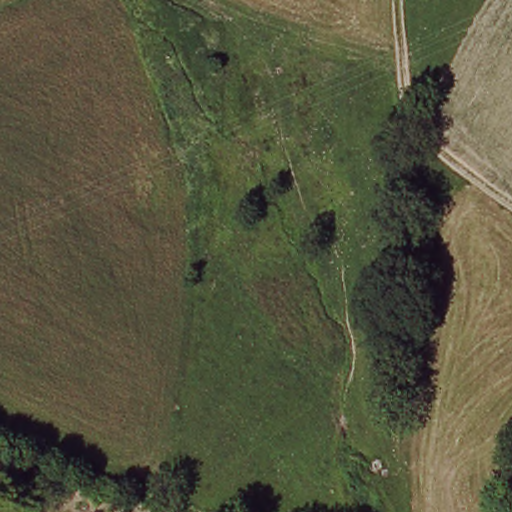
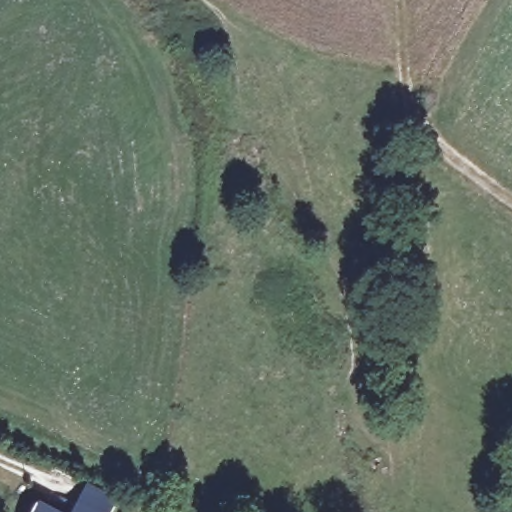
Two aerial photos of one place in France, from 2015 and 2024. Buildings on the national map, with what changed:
new [(87,483),(118,500),(112,512),(71,512),(87,483)]
new [(63,512),(32,512),(40,499),(63,512)]

